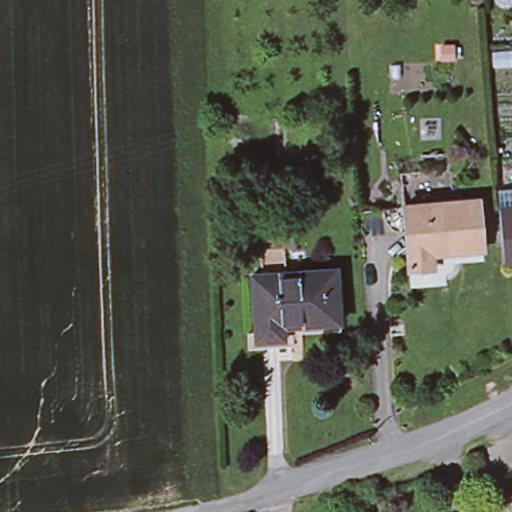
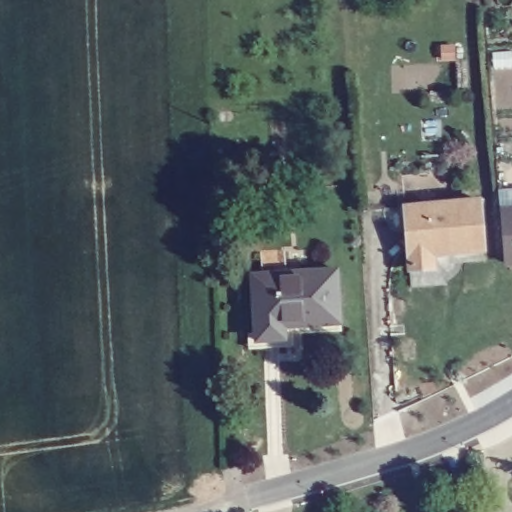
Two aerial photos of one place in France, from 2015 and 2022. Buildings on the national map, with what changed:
unchanged [(476,199),(480,247),(445,250),(442,201),(476,199)]
unchanged [(445,250),(440,251),(439,247),(428,248),(430,265),(407,267),(402,204),(442,201),(445,250)]
unchanged [(512,208),(512,253),(496,255),(492,209),(512,208)]
unchanged [(282,336),(253,337),(250,271),(334,266),(337,321),(282,324),(282,336)]

